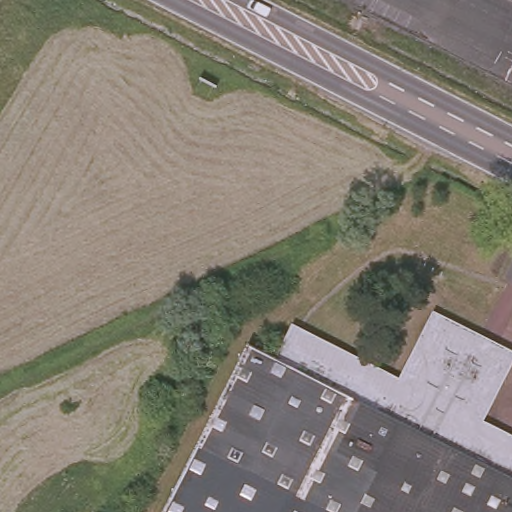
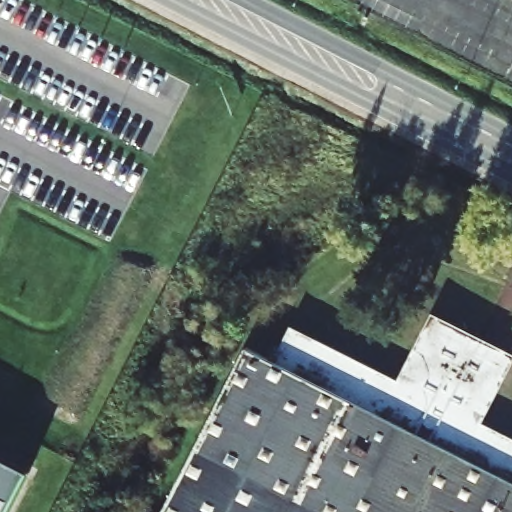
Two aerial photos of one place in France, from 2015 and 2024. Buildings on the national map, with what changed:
unchanged [(490,352),(510,361),(476,429),(512,447),(512,512),(162,512),(243,353),(269,366),(285,332),(392,386),(425,319),(472,342),(490,352)]
new [(30,471),(9,512),(0,512),(0,456),(30,471)]

